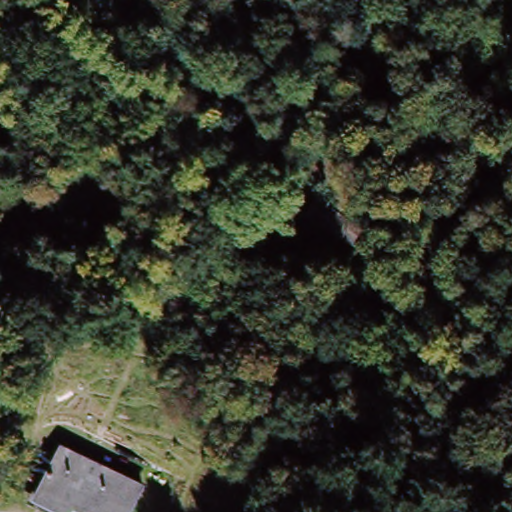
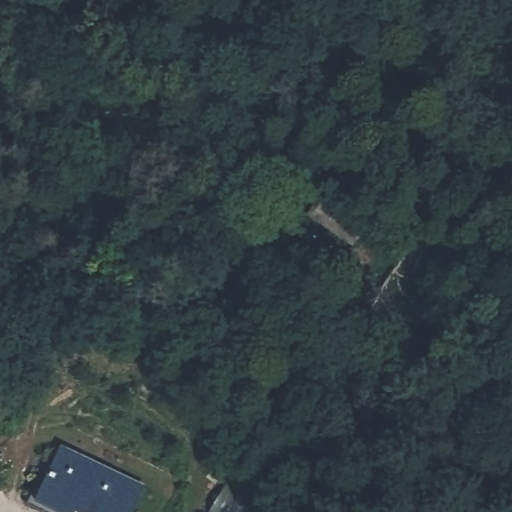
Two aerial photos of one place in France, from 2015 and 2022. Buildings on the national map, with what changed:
unchanged [(58,450),(144,488),(134,512),(59,512),(30,502),(58,450)]

